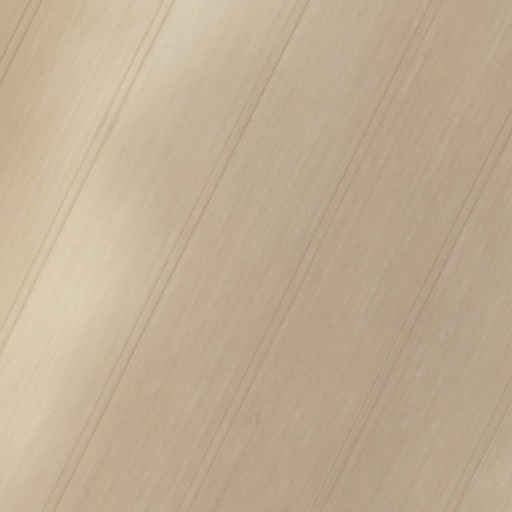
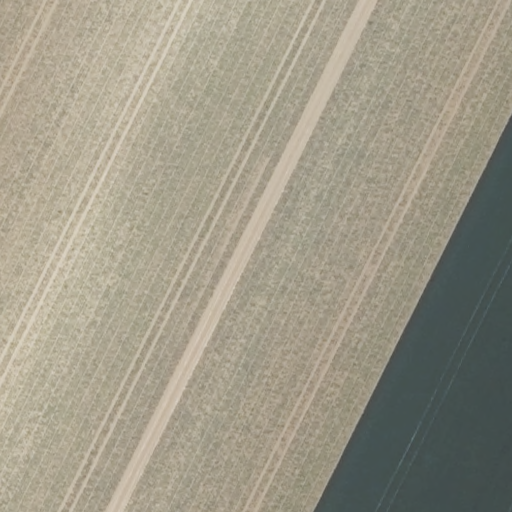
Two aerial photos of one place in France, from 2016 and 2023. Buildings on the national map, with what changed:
[]

